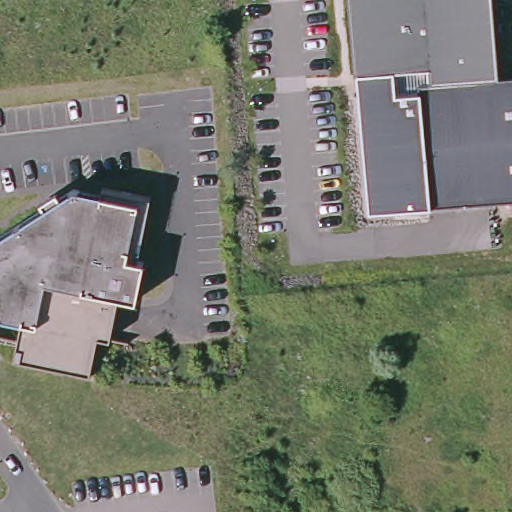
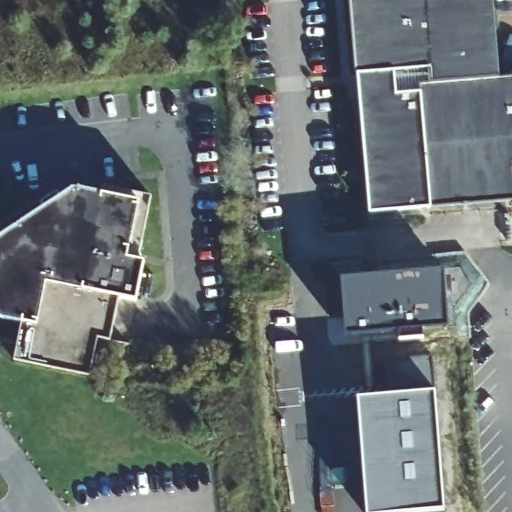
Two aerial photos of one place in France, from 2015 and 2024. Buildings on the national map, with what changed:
unchanged [(485,0),(491,75),(430,80),(429,67),(392,70),(354,73),(348,0),(485,0)]
unchanged [(392,70),(394,93),(416,91),(415,81),(430,80),(491,75),(512,73),(512,199),(366,210),(365,210),(354,73),(392,70)]
unchanged [(90,186),(140,193),(130,258),(137,259),(130,299),(113,296),(107,338),(95,336),(89,375),(12,363),(17,325),(0,322),(0,234),(62,189),(90,193),(90,186)]
new [(447,327),(422,329),(422,337),(398,339),(397,330),(344,336),(340,278),(442,271),(447,327)]
new [(445,512),(366,512),(355,403),(384,400),(382,362),(430,360),(445,512)]

